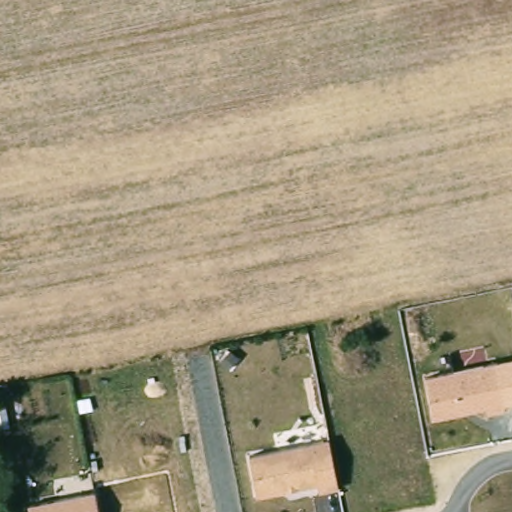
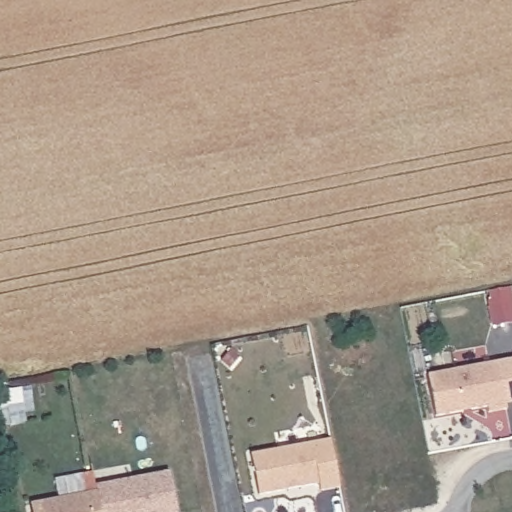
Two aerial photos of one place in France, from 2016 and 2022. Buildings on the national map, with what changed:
unchanged [(427,378),(498,364),(507,409),(488,414),(486,408),(434,418),(427,378)]
unchanged [(249,455),(329,441),(338,488),(318,492),(316,484),(257,494),(249,455)]
new [(95,486),(169,472),(177,512),(100,512),(96,491),(95,486)]
unchanged [(96,491),(100,512),(32,512),(30,504),(96,491)]

